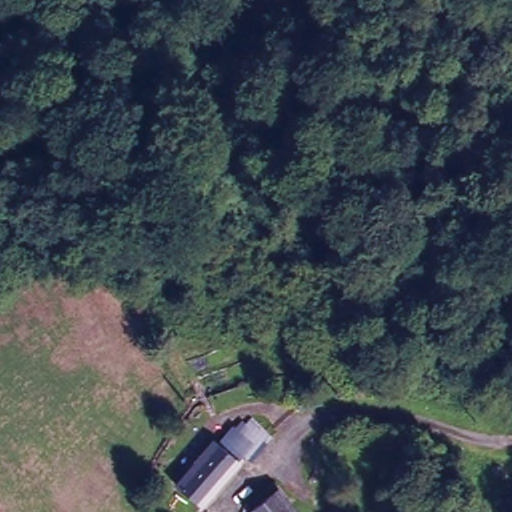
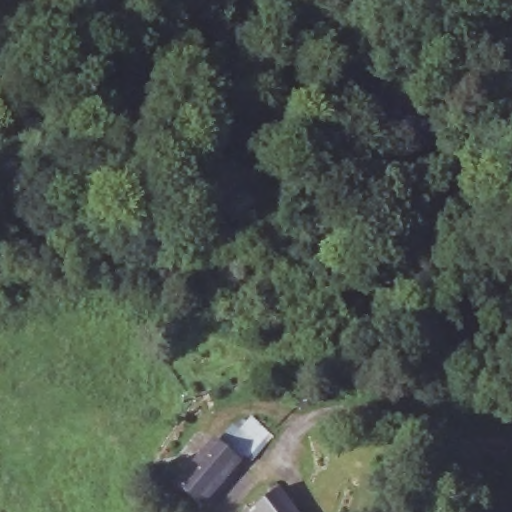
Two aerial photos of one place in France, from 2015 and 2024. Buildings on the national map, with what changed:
unchanged [(271,433),(248,466),(239,461),(222,446),(237,424),(247,411),(255,417),(271,433)]
unchanged [(214,439),(222,446),(239,461),(198,507),(173,487),(177,483),(214,439)]
unchanged [(252,512),(276,491),(294,512),(252,512)]

